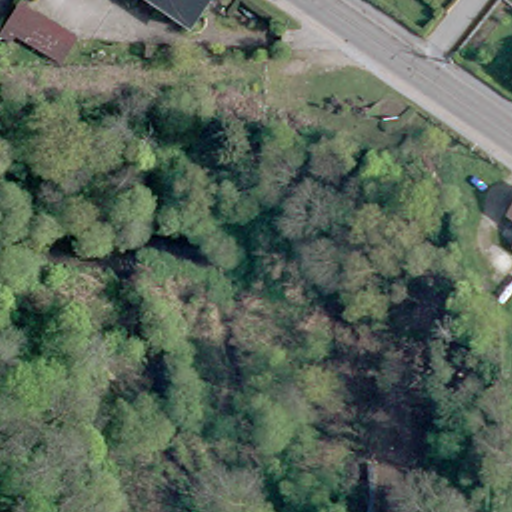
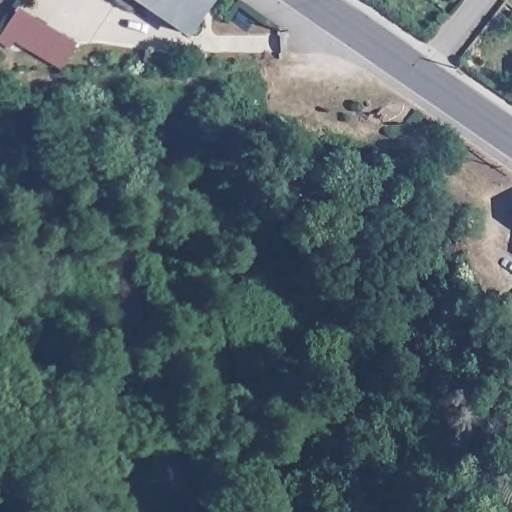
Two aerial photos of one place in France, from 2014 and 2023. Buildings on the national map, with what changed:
unchanged [(180,32),(132,0),(201,0),(202,1),(180,32)]
unchanged [(59,71),(18,47),(12,56),(0,49),(0,45),(20,15),(74,49),(59,71)]

